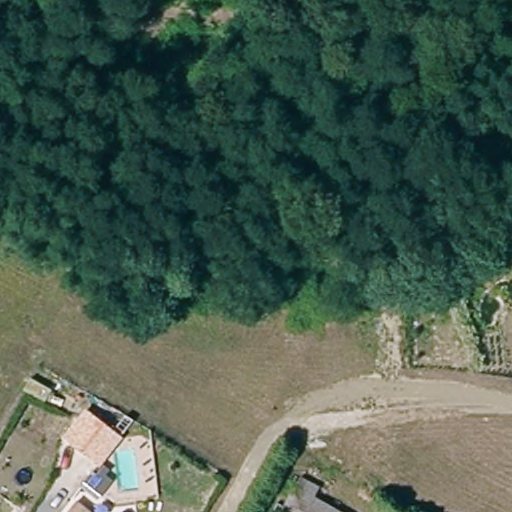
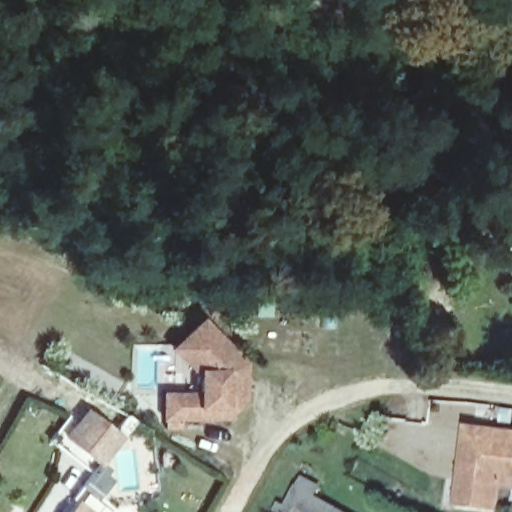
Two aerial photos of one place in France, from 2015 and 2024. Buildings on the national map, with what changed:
new [(226,420),(161,419),(162,390),(197,388),(197,373),(169,347),(201,315),(247,361),(246,399),(226,420)]
unchanged [(64,438),(85,409),(125,438),(100,467),(64,438)]
new [(497,512),(453,508),(463,426),(512,431),(512,489),(500,488),(497,512)]
unchanged [(101,498),(90,489),(100,476),(112,485),(101,498)]
unchanged [(348,512),(284,512),(302,484),(348,512)]
unchanged [(86,512),(70,512),(76,505),(86,512)]

